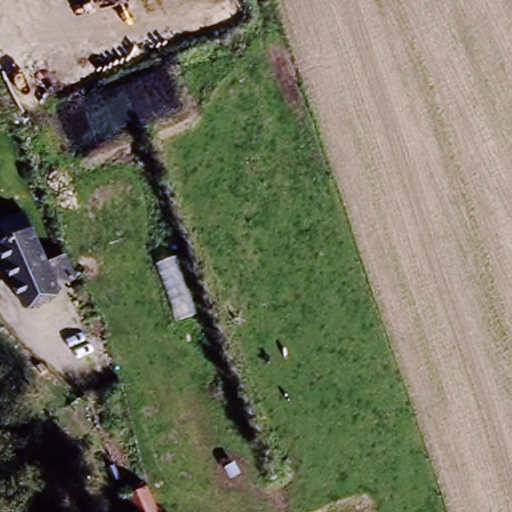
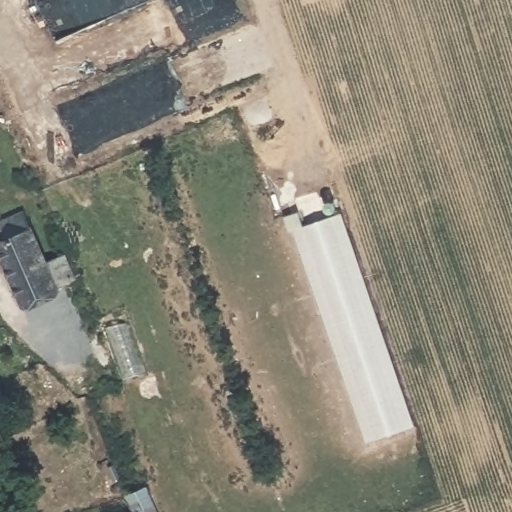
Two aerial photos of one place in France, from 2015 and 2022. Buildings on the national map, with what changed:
new [(417,428),(367,445),(294,230),(289,232),(284,217),(299,212),(305,226),(343,213),(417,428)]
unchanged [(24,308),(0,257),(0,248),(10,243),(1,225),(27,213),(51,263),(68,255),(80,281),(63,290),(60,299),(33,311),(24,308)]
unchanged [(158,512),(135,512),(128,496),(148,485),(158,512)]

